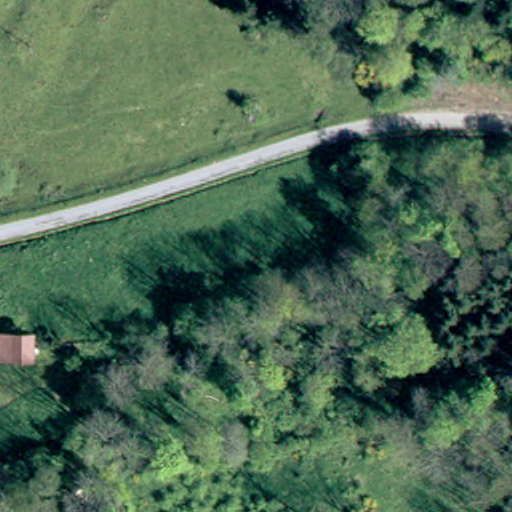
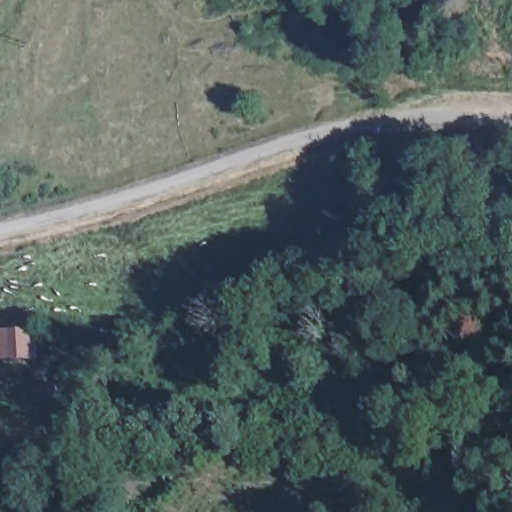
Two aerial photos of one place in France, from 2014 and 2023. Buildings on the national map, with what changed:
unchanged [(1,357),(0,332),(16,332),(38,333),(37,343),(37,356),(1,357)]

